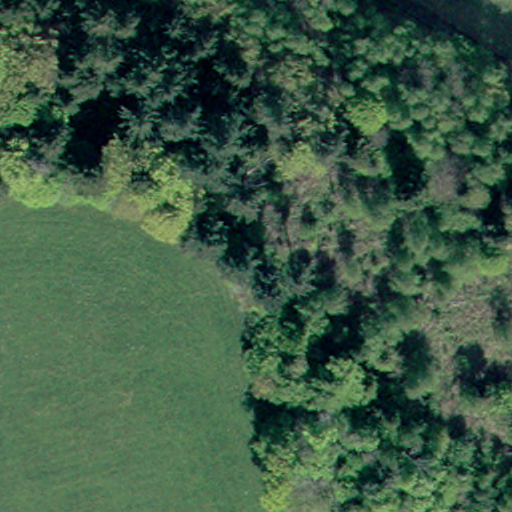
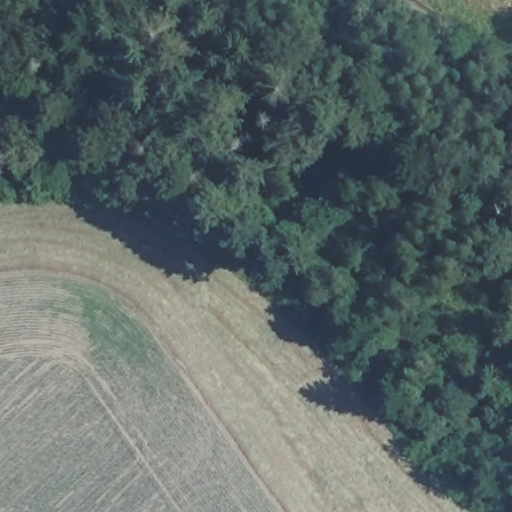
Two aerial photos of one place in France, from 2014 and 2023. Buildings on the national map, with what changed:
unchanged [(387,14),(365,0),(396,0),(387,14)]

